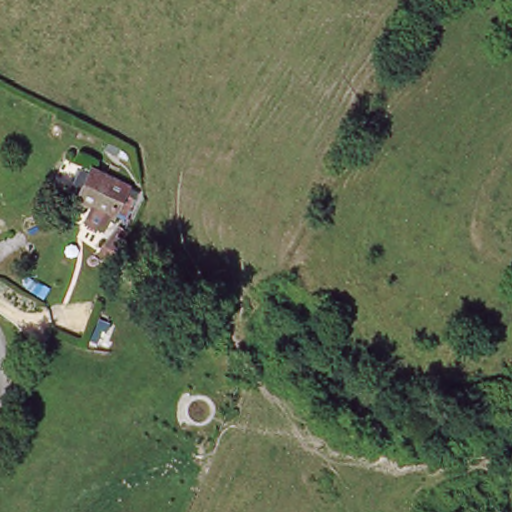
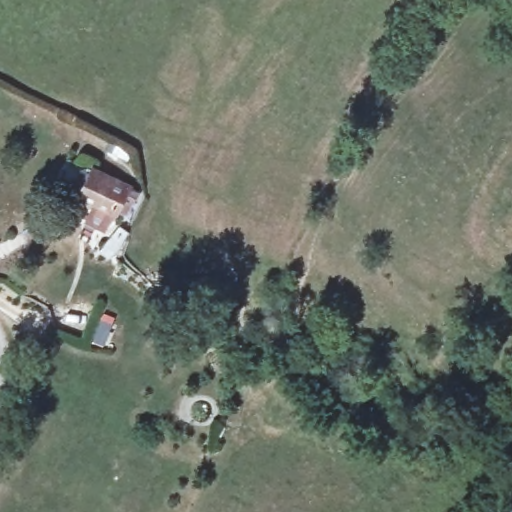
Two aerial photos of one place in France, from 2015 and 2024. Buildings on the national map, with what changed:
unchanged [(131,190),(119,218),(80,198),(95,172),(131,190)]

